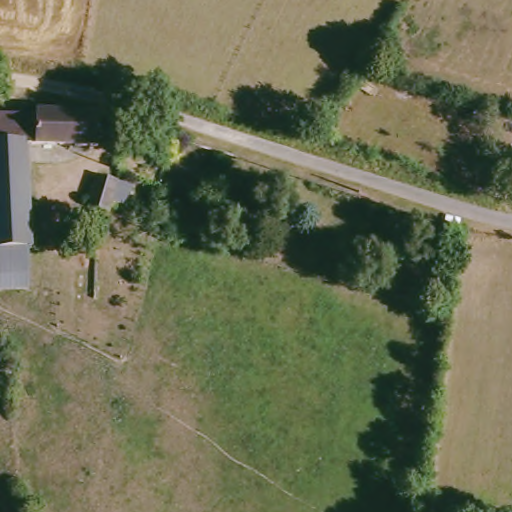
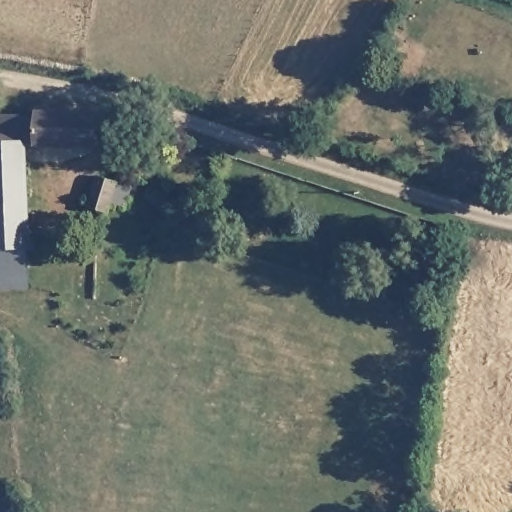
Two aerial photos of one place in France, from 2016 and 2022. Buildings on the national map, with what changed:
unchanged [(93,143),(62,143),(60,107),(92,106),(93,143)]
unchanged [(32,145),(32,244),(28,248),(0,248),(0,111),(32,111),(35,108),(60,107),(62,143),(32,145)]
unchanged [(117,181),(125,183),(120,201),(109,199),(107,208),(87,201),(95,175),(110,179),(110,175),(118,177),(117,181)]
unchanged [(28,248),(30,289),(0,289),(0,248),(28,248)]

